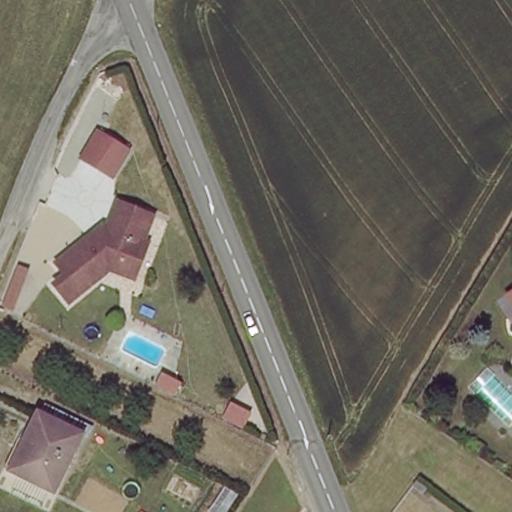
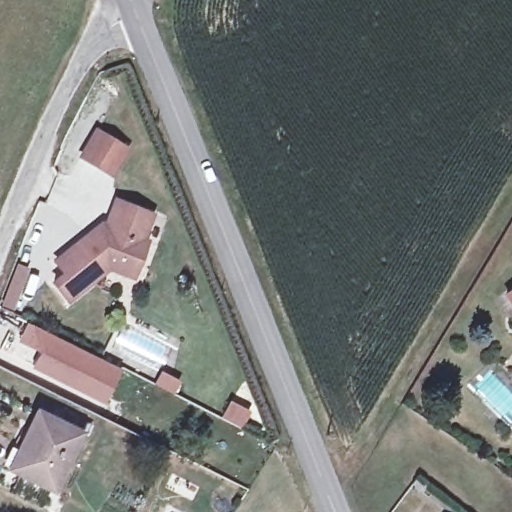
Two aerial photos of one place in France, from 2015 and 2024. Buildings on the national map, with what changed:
unchanged [(128,148),(112,179),(79,161),(93,134),(128,148)]
unchanged [(108,267),(65,300),(50,283),(63,272),(53,261),(87,235),(95,238),(100,225),(105,227),(117,200),(152,215),(142,241),(145,243),(135,269),(132,278),(108,267)]
new [(15,262),(28,267),(13,312),(0,307),(0,301),(15,262)]
unchanged [(512,291),(512,317),(502,297),(512,291)]
new [(25,321),(119,368),(102,405),(28,369),(37,352),(15,342),(25,321)]
unchanged [(75,436),(47,490),(5,468),(33,414),(75,436)]
demolished [(147,467),(171,477),(152,512),(141,512),(132,506),(147,467)]
unchanged [(424,489),(418,497),(408,490),(414,483),(424,489)]

